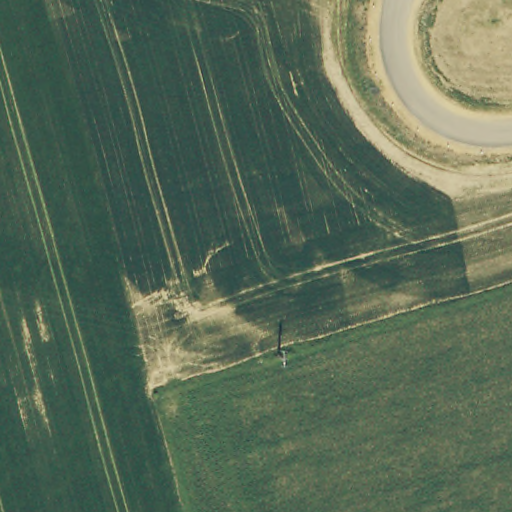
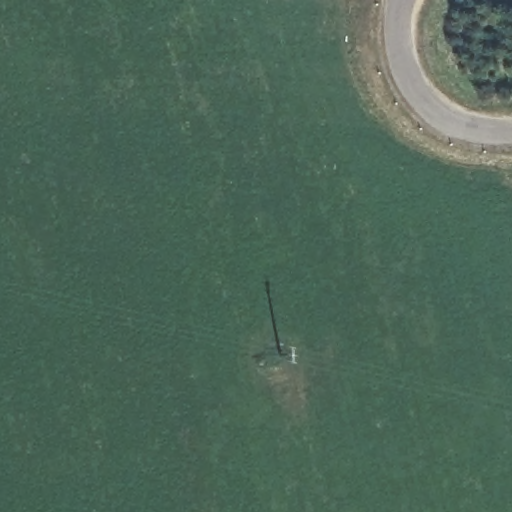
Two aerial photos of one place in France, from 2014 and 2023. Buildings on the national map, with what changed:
[]

